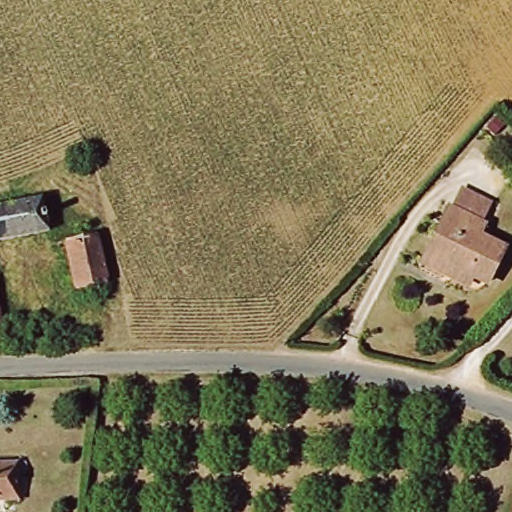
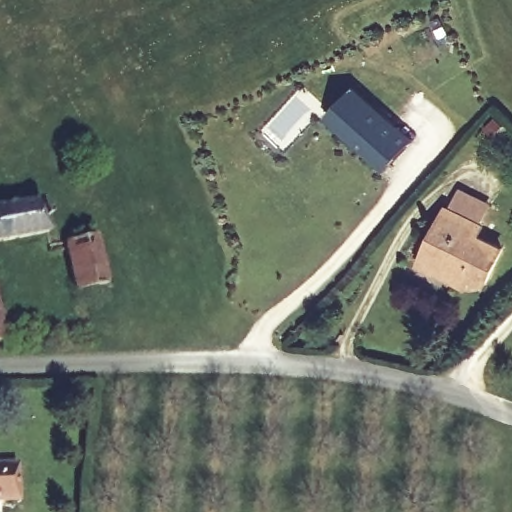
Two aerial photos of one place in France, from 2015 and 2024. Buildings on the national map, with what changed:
new [(414,139),(385,172),(325,120),(356,85),(414,139)]
unchanged [(458,207),(467,187),(499,202),(484,235),(512,246),(512,248),(493,287),(477,282),(472,289),(425,265),(453,205),(458,207)]
unchanged [(42,195),(50,232),(0,241),(0,203),(42,195)]
unchanged [(71,240),(100,234),(110,282),(82,289),(71,240)]
unchanged [(7,338),(0,339),(0,299),(7,338)]
unchanged [(22,466),(24,502),(0,503),(0,465),(22,466)]

